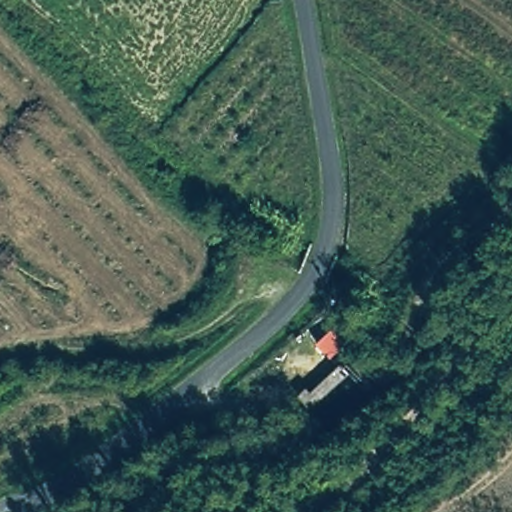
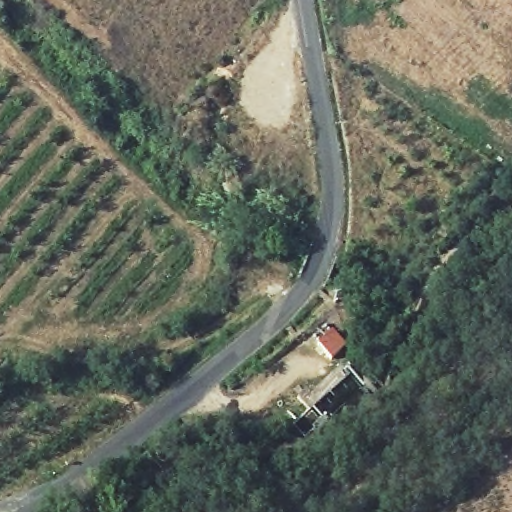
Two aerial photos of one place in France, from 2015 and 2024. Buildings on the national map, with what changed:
unchanged [(331,328),(345,346),(330,357),(317,343),(331,328)]
unchanged [(339,366),(346,375),(310,409),(297,398),(306,389),(311,395),(339,366)]

